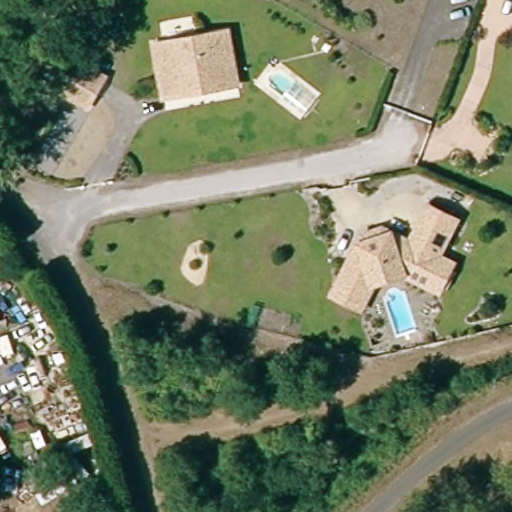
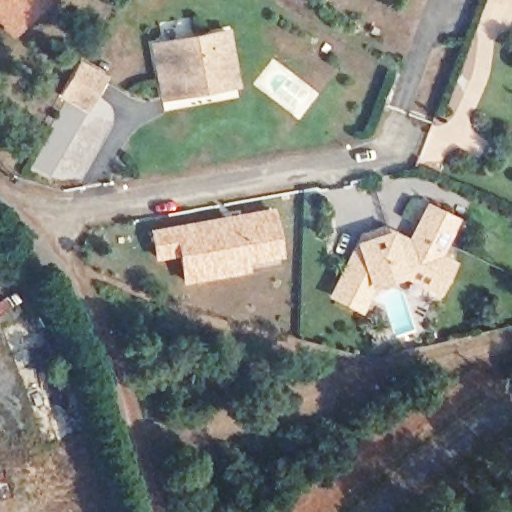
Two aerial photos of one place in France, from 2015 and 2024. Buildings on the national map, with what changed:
new [(0,26),(0,0),(54,0),(14,40),(0,26)]
unchanged [(164,101),(152,48),(227,32),(238,86),(215,90),(186,96),(164,101)]
unchanged [(80,68),(106,81),(90,113),(63,98),(80,68)]
unchanged [(403,266),(375,276),(363,301),(336,288),(356,246),(365,230),(383,223),(399,230),(410,236),(418,220),(428,200),(455,213),(437,249),(441,250),(452,256),(439,283),(428,277),(403,266)]
new [(274,205),(282,258),(247,264),(249,273),(181,284),(176,257),(154,260),(147,228),(274,205)]

